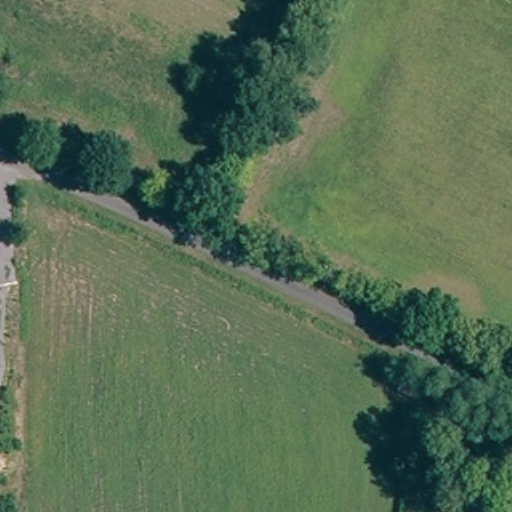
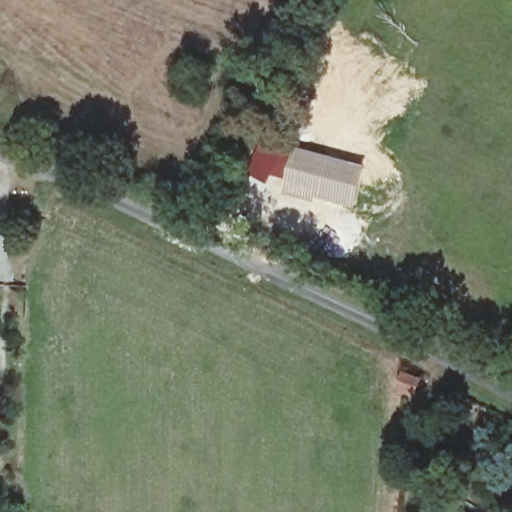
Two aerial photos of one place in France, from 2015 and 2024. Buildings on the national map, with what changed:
new [(253,129),(295,145),(368,166),(356,210),(282,194),(285,182),(276,180),(273,186),(238,169),(253,129)]

